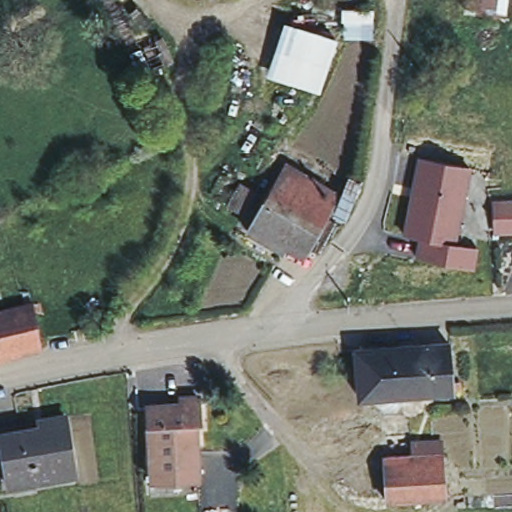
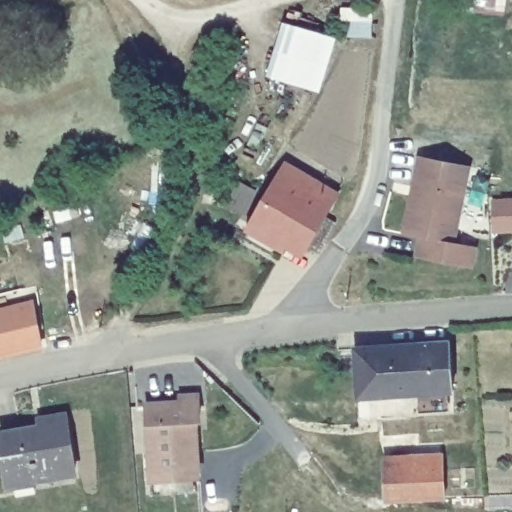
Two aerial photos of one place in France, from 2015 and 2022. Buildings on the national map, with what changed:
unchanged [(467,10),(468,0),(504,0),(502,14),(467,10)]
unchanged [(282,21),(338,42),(319,93),(264,77),(282,21)]
unchanged [(469,166),(453,242),(475,247),(472,267),(417,257),(420,237),(405,235),(405,231),(417,169),(420,157),(423,157),(469,166)]
unchanged [(336,193),(305,247),(289,238),(283,249),(245,227),(283,162),(336,193)]
unchanged [(512,199),(512,231),(492,233),(490,202),(512,199)]
unchanged [(40,341),(2,349),(0,339),(0,304),(30,296),(40,341)]
unchanged [(0,350),(0,339),(2,349),(0,350)]
unchanged [(450,342),(454,390),(416,393),(412,345),(450,342)]
unchanged [(412,345),(416,393),(392,395),(388,347),(412,345)]
unchanged [(388,347),(392,395),(360,397),(355,349),(388,347)]
unchanged [(152,481),(147,405),(182,402),(181,396),(198,395),(200,422),(196,423),(200,477),(152,481)]
unchanged [(44,426),(42,418),(66,414),(75,472),(9,485),(0,434),(44,426)]
unchanged [(412,460),(411,438),(442,437),(446,491),(422,492),(385,494),(383,462),(412,460)]

